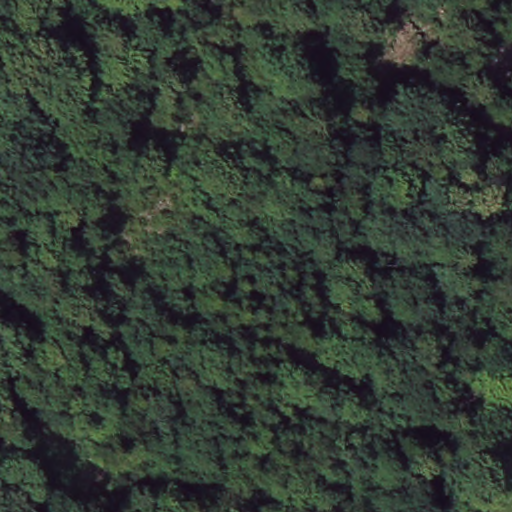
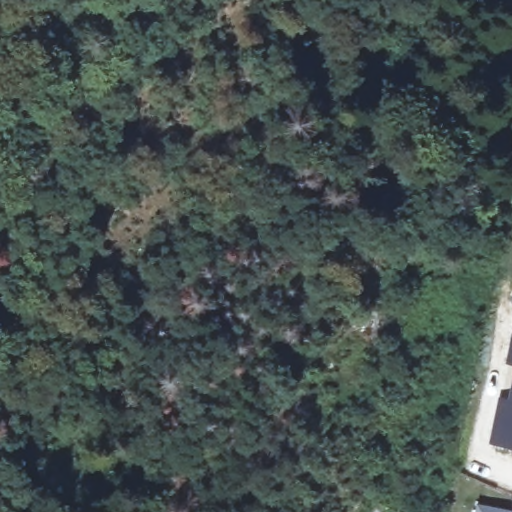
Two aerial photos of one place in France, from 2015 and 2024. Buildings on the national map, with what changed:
new [(505,364),(512,331),(512,365),(505,364)]
new [(489,444),(498,400),(507,401),(512,377),(512,448),(489,444)]
new [(477,503),(512,510),(512,512),(475,512),(477,503)]

